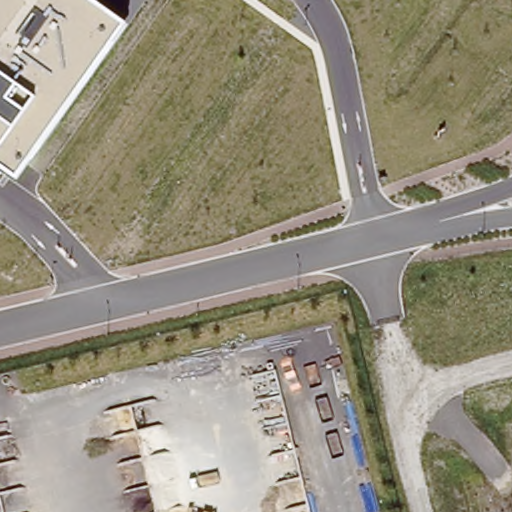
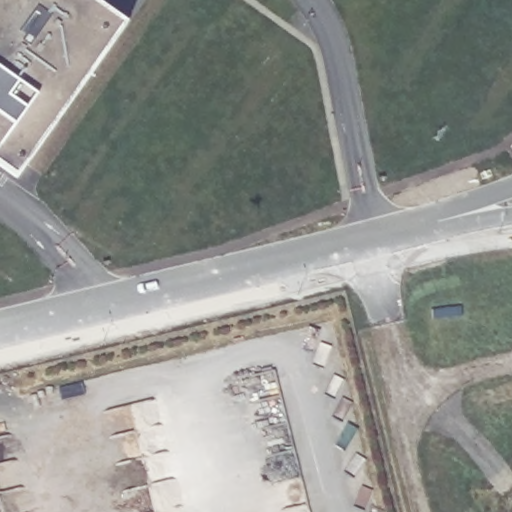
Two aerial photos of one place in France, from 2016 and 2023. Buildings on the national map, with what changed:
unchanged [(0,168),(0,0),(108,0),(105,5),(129,25),(17,180),(0,168)]

